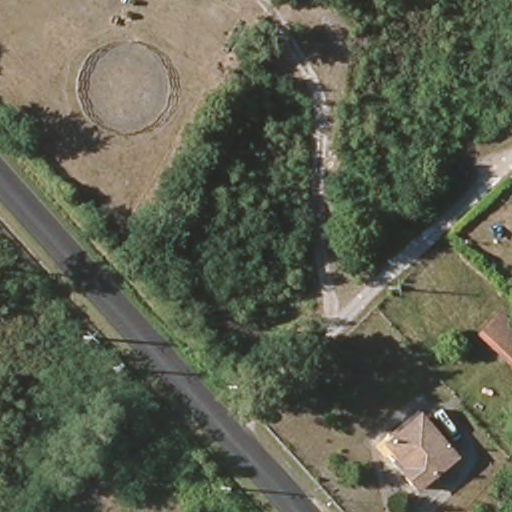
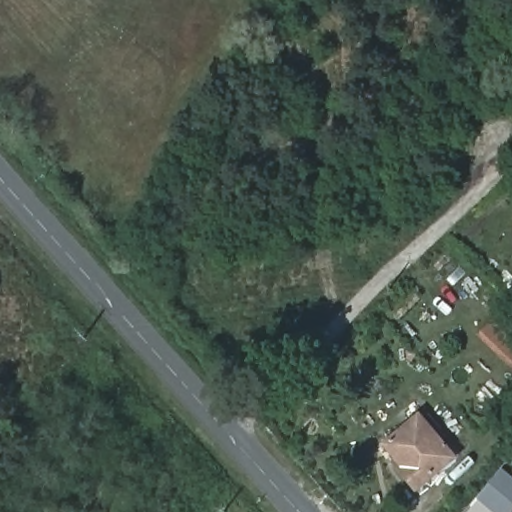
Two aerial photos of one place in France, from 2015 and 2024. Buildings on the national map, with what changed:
unchanged [(512,364),(482,335),(501,315),(512,326),(512,364)]
unchanged [(415,490),(396,468),(402,462),(385,441),(421,415),(454,457),(415,490)]
new [(501,470),(512,479),(512,512),(493,512),(477,498),(501,470)]

